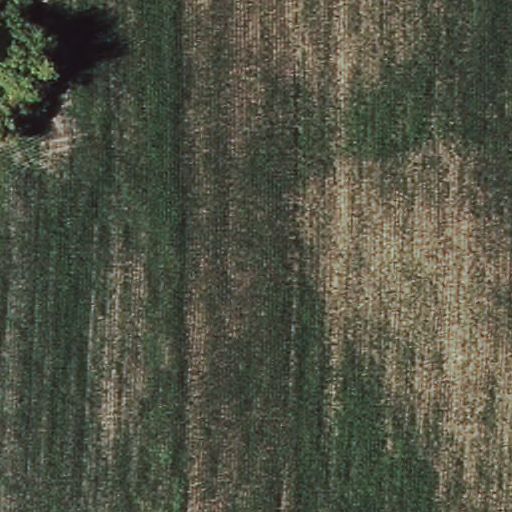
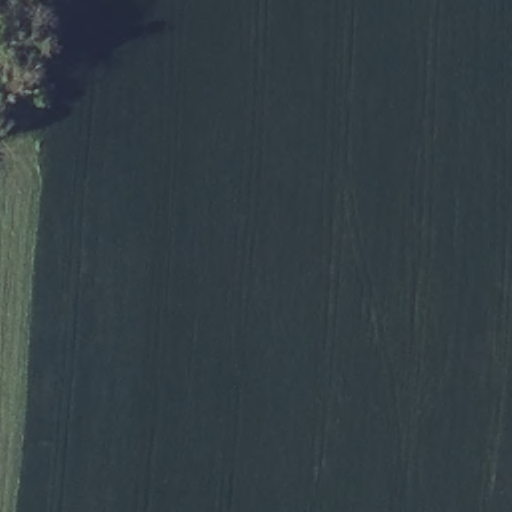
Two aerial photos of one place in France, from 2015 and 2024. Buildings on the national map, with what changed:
[]

